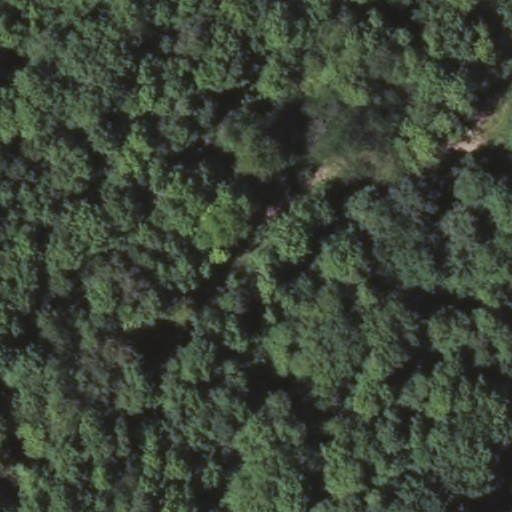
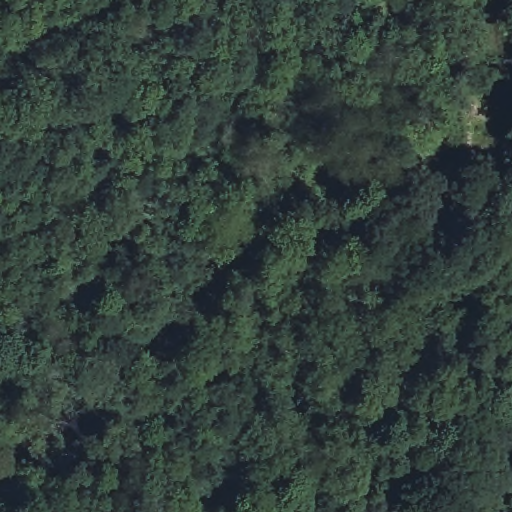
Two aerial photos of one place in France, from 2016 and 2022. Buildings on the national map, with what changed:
[]

